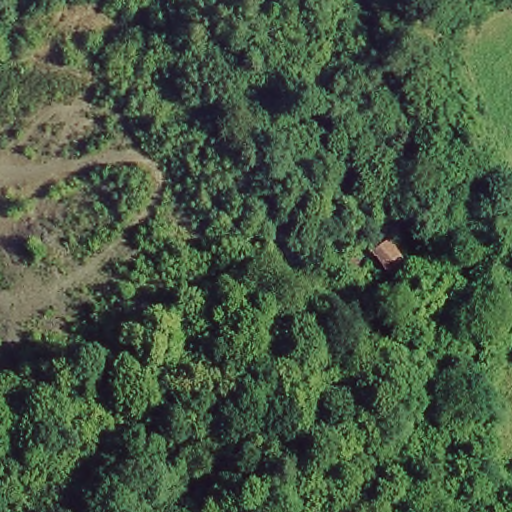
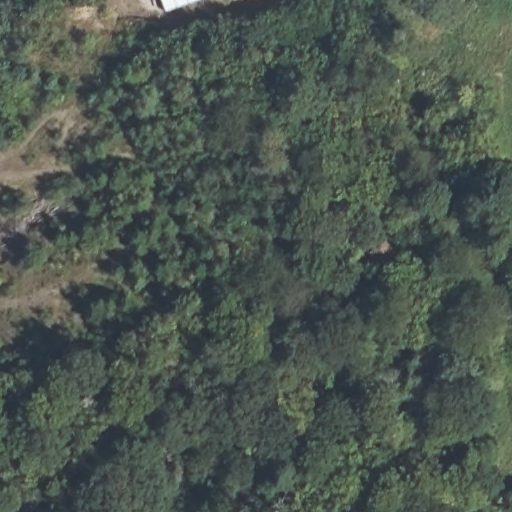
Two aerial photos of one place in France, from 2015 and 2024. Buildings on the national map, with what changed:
new [(170,12),(166,0),(205,0),(170,12)]

